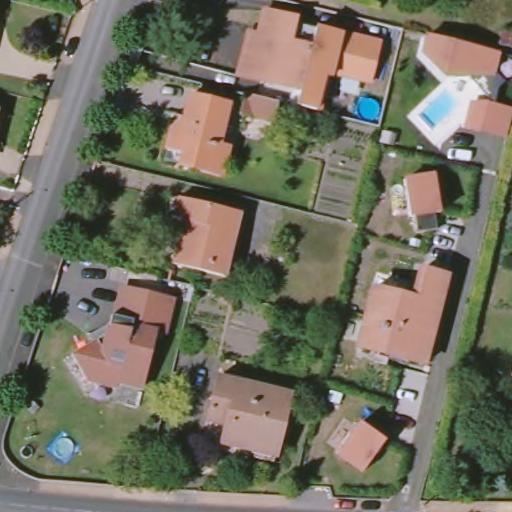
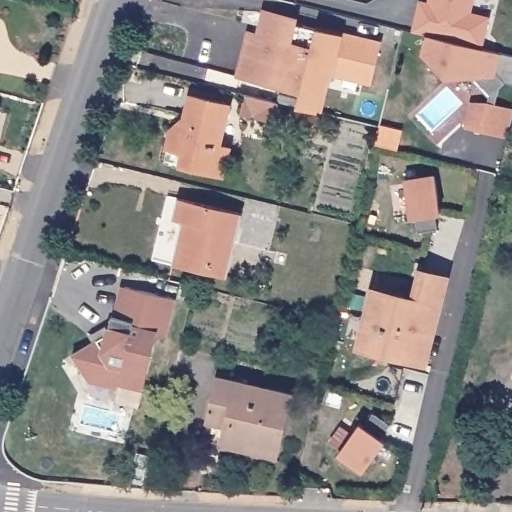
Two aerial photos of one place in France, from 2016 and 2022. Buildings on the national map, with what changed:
new [(472,13),(490,16),(482,47),(424,33),(412,29),(419,0),(421,0),(428,1),(428,0),(475,0),(472,13)]
unchanged [(295,89),(235,75),(245,27),(257,29),(262,6),(297,15),(292,40),(306,42),(295,89)]
unchanged [(341,35),(342,34),(380,43),(370,84),(332,74),(331,79),(325,78),(317,113),(297,108),(301,92),(317,30),(341,35)]
unchanged [(495,73),(503,79),(497,85),(494,93),(489,93),(474,76),(445,76),(422,51),(424,33),(498,51),(495,73)]
unchanged [(283,100),(278,119),(245,111),(250,92),(283,100)]
unchanged [(185,162),(188,152),(172,147),(180,111),(190,113),(195,93),(233,103),(224,143),(233,146),(227,172),(185,162)]
unchanged [(508,134),(464,126),(468,98),(512,106),(512,113),(508,134)]
unchanged [(438,212),(435,212),(437,226),(419,229),(416,214),(409,216),(403,176),(435,172),(438,212)]
unchanged [(173,265),(182,223),(172,221),(178,199),(243,214),(227,279),(173,265)]
unchanged [(447,266),(442,288),(424,358),(419,357),(423,350),(390,341),(385,362),(349,353),(352,345),(357,347),(372,278),(414,289),(422,260),(447,266)]
unchanged [(174,297),(165,334),(158,333),(145,386),(120,380),(118,386),(88,379),(70,357),(108,333),(113,315),(118,316),(125,286),(174,297)]
unchanged [(249,439),(222,433),(208,429),(217,402),(215,402),(223,368),(296,384),(283,439),(282,446),(249,439)]
unchanged [(385,441),(362,475),(335,455),(360,420),(385,441)]

